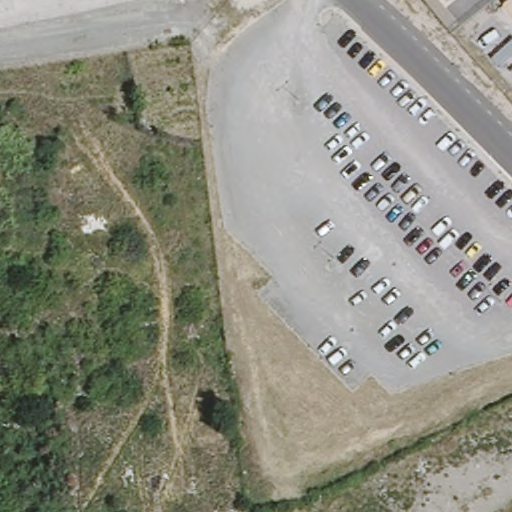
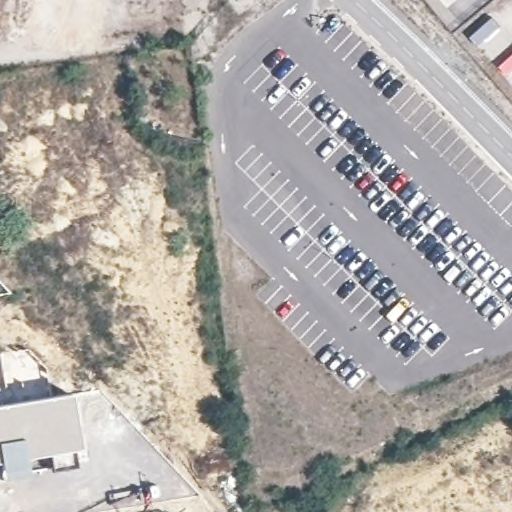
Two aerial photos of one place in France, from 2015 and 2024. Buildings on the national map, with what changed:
new [(29,349),(47,368),(51,396),(0,404),(0,354),(29,349)]
new [(73,392),(82,451),(75,452),(26,462),(28,470),(2,480),(0,473),(0,404),(73,392)]

